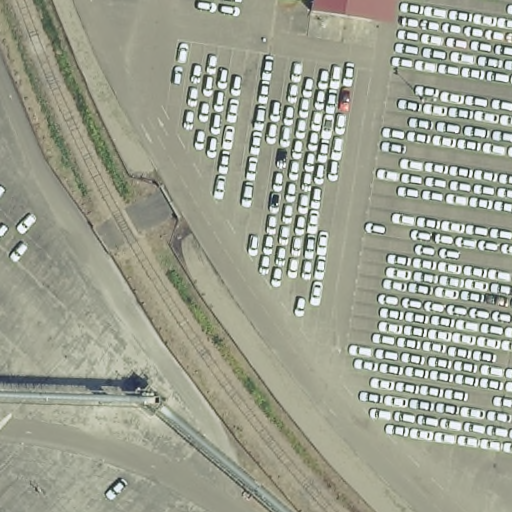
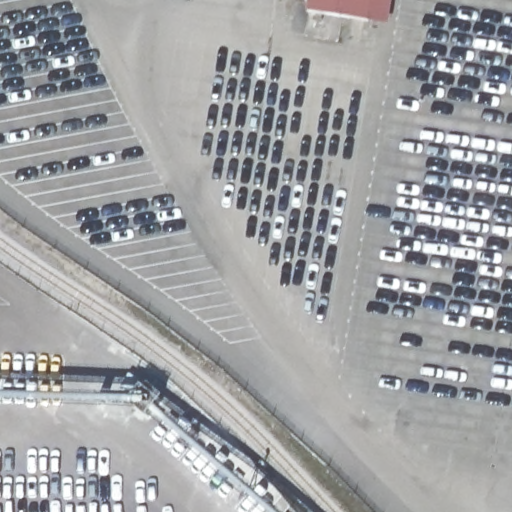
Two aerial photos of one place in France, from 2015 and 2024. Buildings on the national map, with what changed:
unchanged [(370,20),(308,8),(308,0),(373,0),(370,20)]

